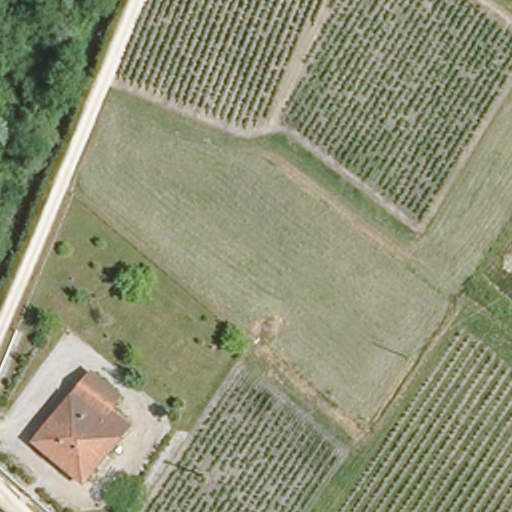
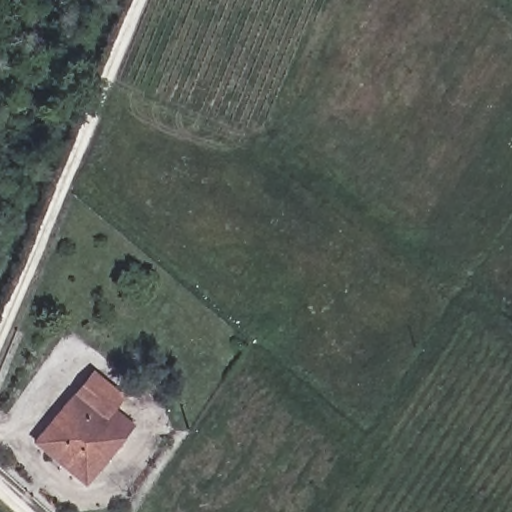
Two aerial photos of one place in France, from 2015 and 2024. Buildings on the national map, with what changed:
unchanged [(130,421),(83,477),(35,437),(92,369),(120,392),(110,404),(130,421)]

